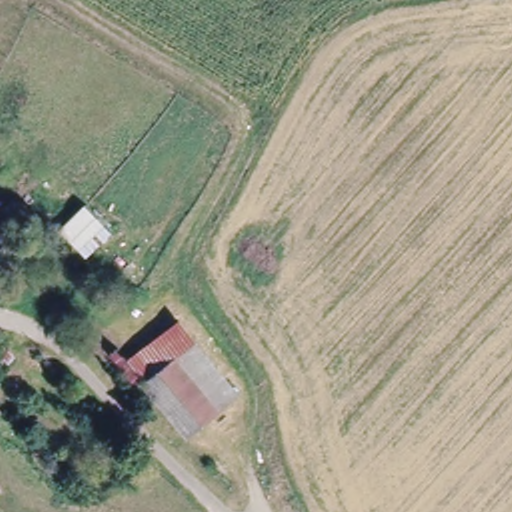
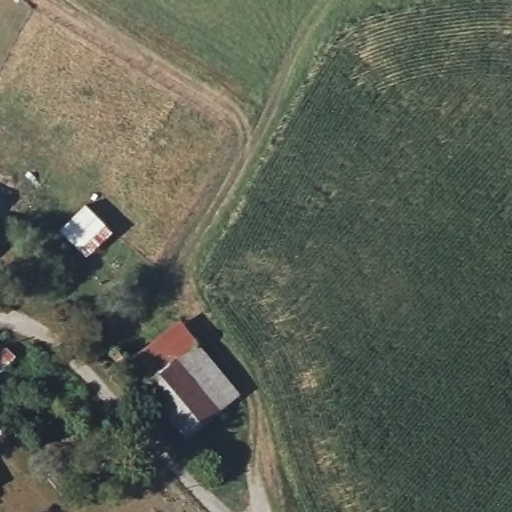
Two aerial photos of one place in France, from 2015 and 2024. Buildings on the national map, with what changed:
unchanged [(87,202),(117,232),(91,262),(62,230),(87,202)]
unchanged [(242,395),(187,445),(145,380),(134,386),(115,357),(124,350),(132,357),(181,318),(242,395)]

